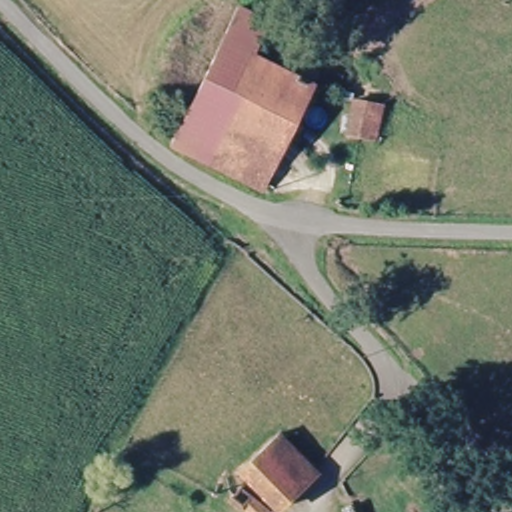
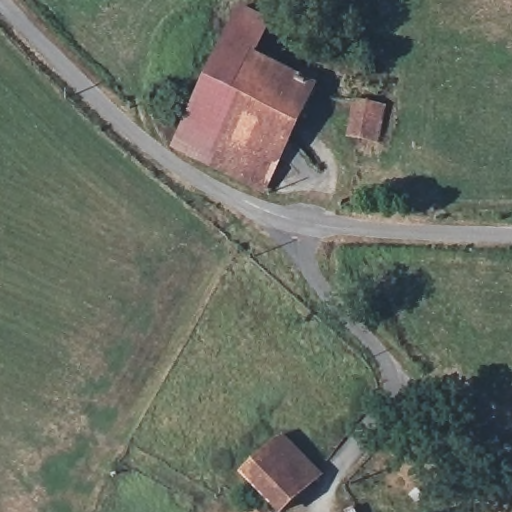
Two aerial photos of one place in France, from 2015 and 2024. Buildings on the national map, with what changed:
unchanged [(256,179),(220,165),(177,151),(230,10),(260,21),(248,53),(278,64),(312,76),(275,186),(256,179)]
unchanged [(294,33),(288,49),(272,42),(277,25),(279,17),(297,23),(294,33)]
unchanged [(345,134),(350,103),(389,110),(386,141),(345,134)]
unchanged [(283,440),(318,479),(281,512),(266,512),(237,476),(283,440)]

